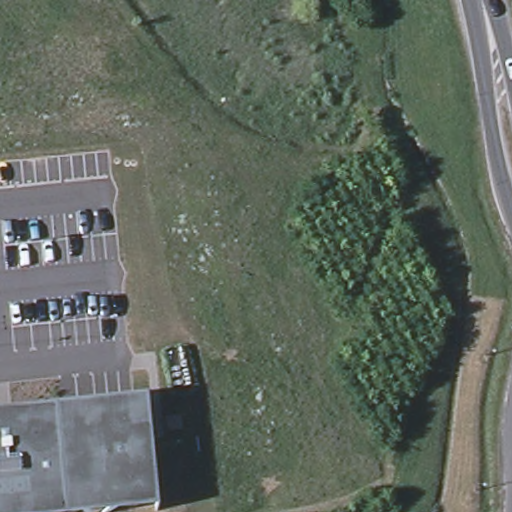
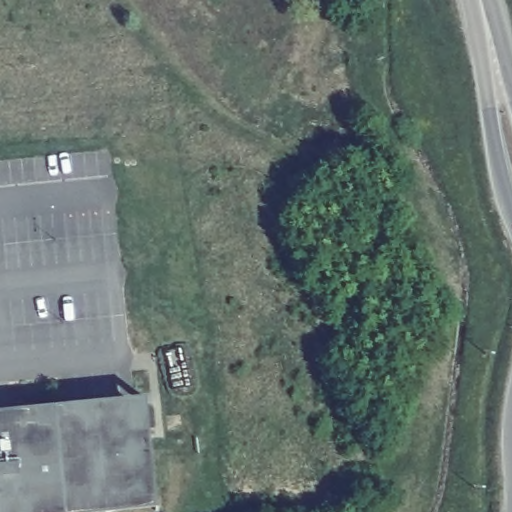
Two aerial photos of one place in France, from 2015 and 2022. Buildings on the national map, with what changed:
unchanged [(147,401),(157,510),(142,512),(0,512),(0,414),(147,401)]

